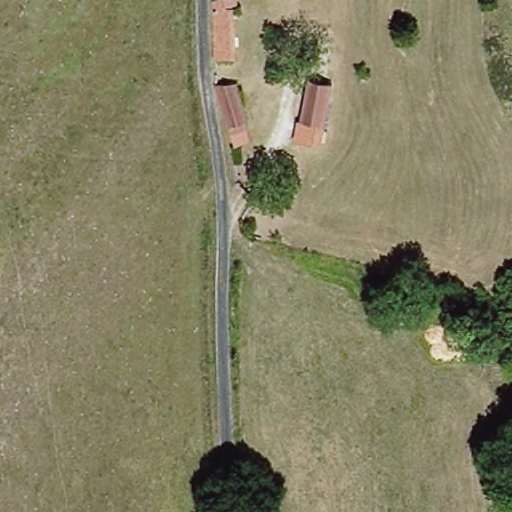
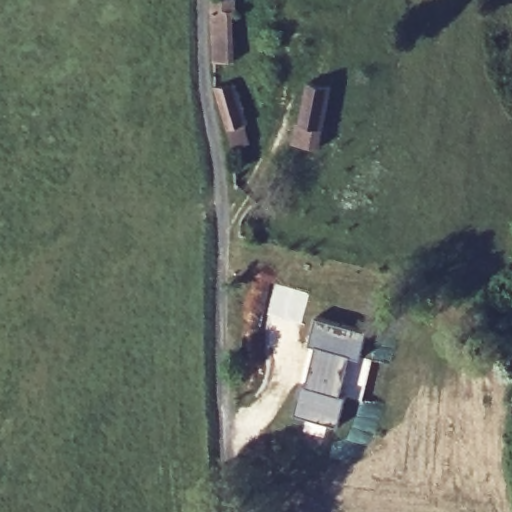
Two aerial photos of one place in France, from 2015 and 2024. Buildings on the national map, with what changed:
unchanged [(222,16),(228,17),(227,63),(217,61),(212,78),(211,0),(213,0),(222,2),(222,16)]
unchanged [(298,81),(327,81),(327,118),(327,144),(298,144),(298,115),(298,81)]
unchanged [(228,135),(212,94),(234,86),(240,103),(249,101),(253,116),(245,119),(248,135),(228,135)]
new [(274,285),(309,292),(302,324),(267,316),(274,285)]
new [(348,395),(342,425),(295,414),(306,381),(315,344),(310,343),(317,315),(372,329),(370,342),(373,344),(372,354),(365,398),(348,395)]

